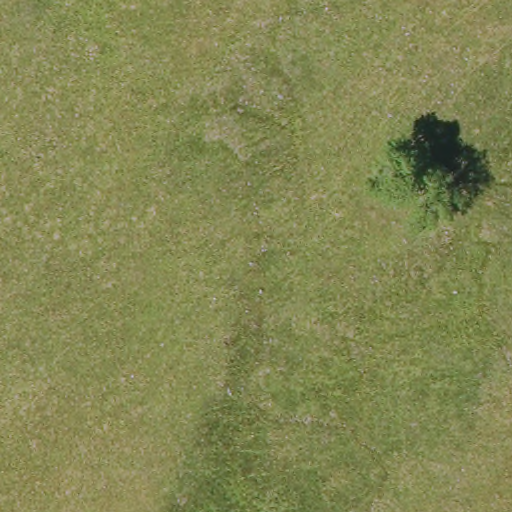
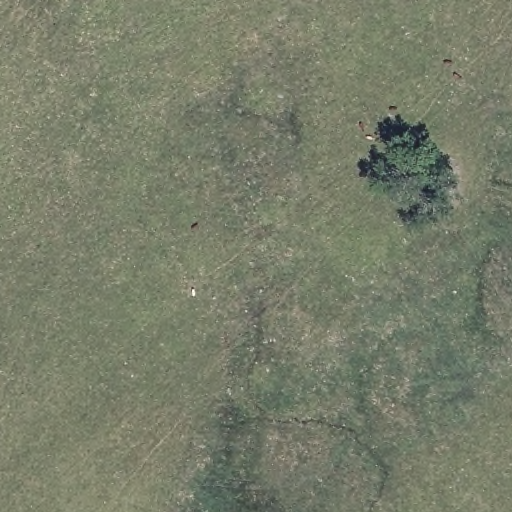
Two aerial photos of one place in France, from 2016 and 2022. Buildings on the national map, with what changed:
unchanged [(455,181),(440,201),(410,180),(424,160),(455,181)]

